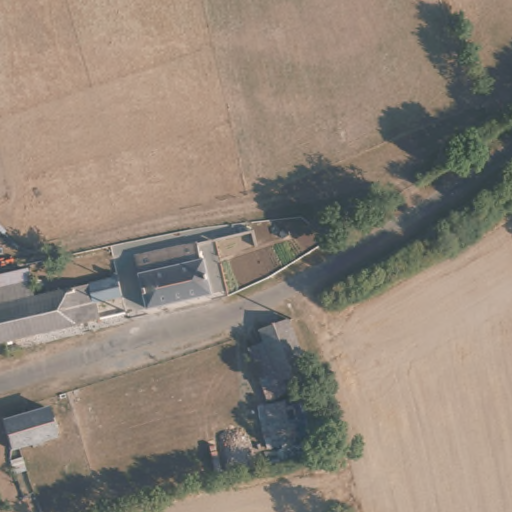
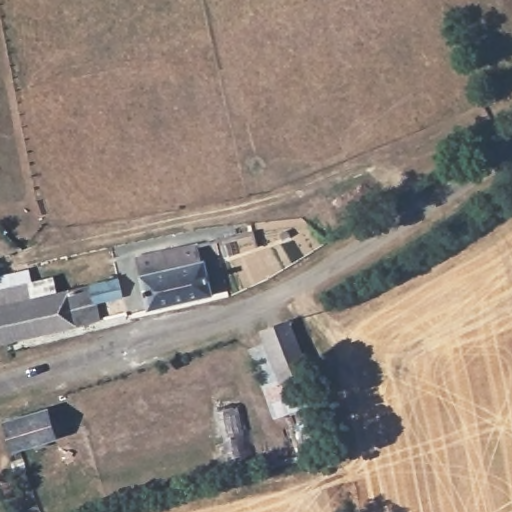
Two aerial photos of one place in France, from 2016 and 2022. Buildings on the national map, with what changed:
unchanged [(254,238),(257,258),(206,267),(210,297),(144,308),(140,275),(137,259),(254,238)]
unchanged [(9,306),(5,286),(40,280),(43,298),(29,301),(35,336),(0,344),(0,308),(9,306)]
unchanged [(121,284),(125,300),(96,304),(100,324),(35,336),(29,301),(43,298),(121,284)]
unchanged [(291,316),(308,374),(280,384),(262,331),(291,316)]
unchanged [(51,406),(60,437),(10,451),(1,421),(51,406)]

